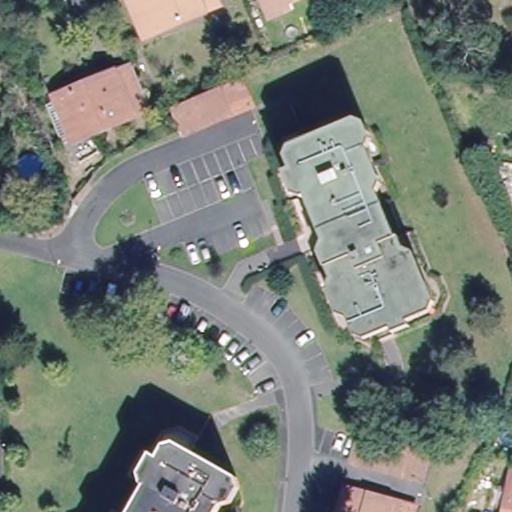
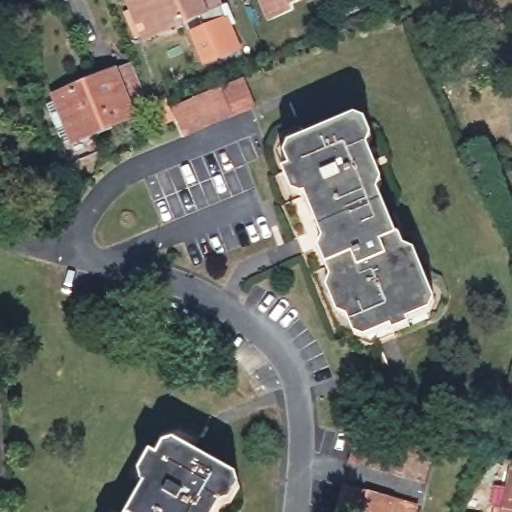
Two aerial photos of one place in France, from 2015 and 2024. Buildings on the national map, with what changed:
unchanged [(142,0),(214,0),(216,5),(154,30),(140,36),(125,0),(142,0)]
unchanged [(291,0),(292,2),(273,11),(269,0),(291,0)]
new [(242,47),(203,64),(190,31),(228,15),(242,47)]
unchanged [(71,139),(55,96),(131,67),(148,110),(71,139)]
unchanged [(182,139),(172,115),(242,85),(251,109),(182,139)]
unchanged [(371,346),(370,342),(358,347),(330,336),(298,257),(303,255),(297,240),(291,242),(278,210),(283,207),(272,180),(277,177),(267,154),(275,138),(297,130),(302,142),(347,125),(369,136),(381,165),(373,167),(389,205),(382,207),(396,240),(406,236),(421,275),(432,279),(440,301),(431,318),(386,335),(388,340),(371,346)]
unchanged [(108,500),(114,503),(131,472),(125,468),(139,441),(146,445),(158,423),(177,419),(194,430),(187,443),(231,468),(235,490),(223,512),(101,512),(108,500)]
unchanged [(424,477),(350,458),(357,433),(430,451),(424,477)]
unchanged [(512,477),(512,512),(505,512),(512,477)]
unchanged [(417,504),(415,512),(340,512),(336,511),(343,485),(417,504)]

